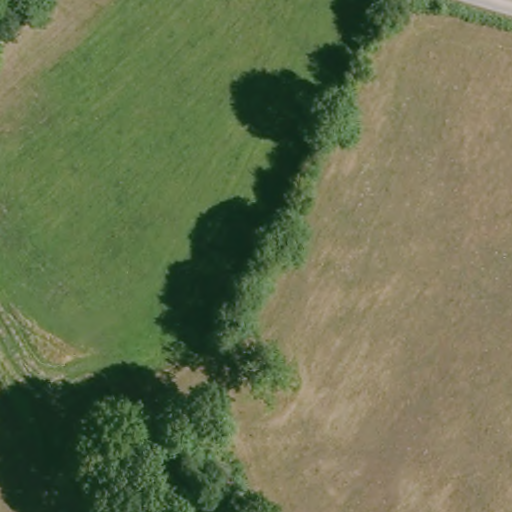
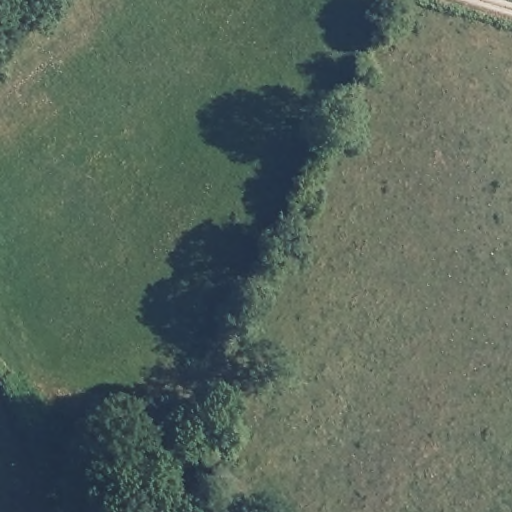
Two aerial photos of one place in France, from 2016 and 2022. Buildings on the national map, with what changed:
[]

